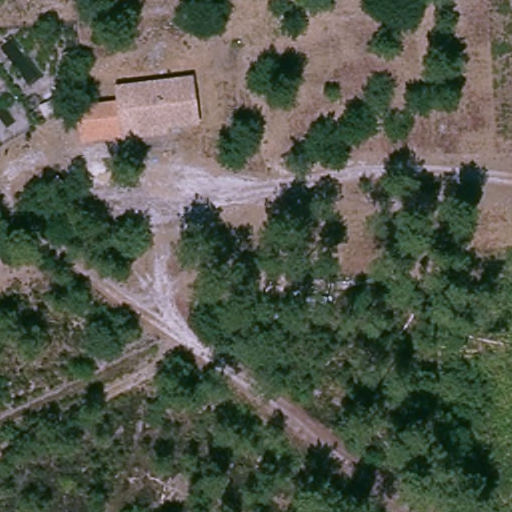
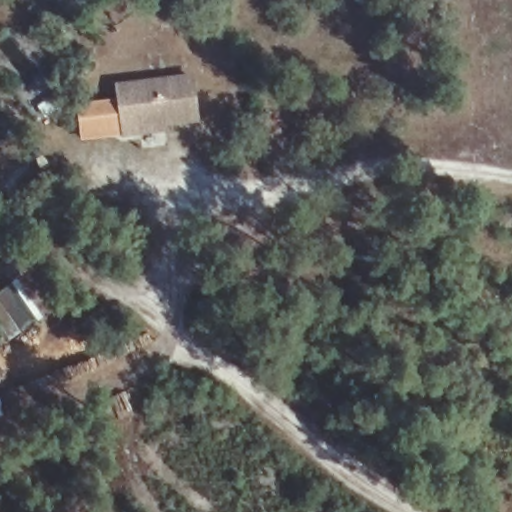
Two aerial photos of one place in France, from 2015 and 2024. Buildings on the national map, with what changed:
unchanged [(198,125),(139,129),(139,135),(80,140),(78,111),(96,109),(95,100),(118,98),(117,85),(194,80),(198,125)]
new [(18,295),(30,298),(44,316),(11,338),(0,325),(0,294),(14,282),(21,291),(18,295)]

